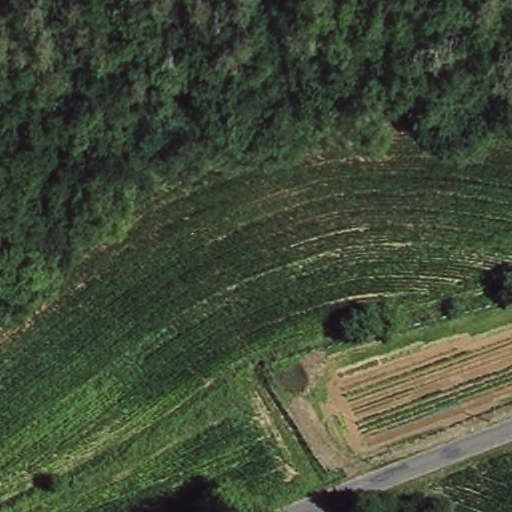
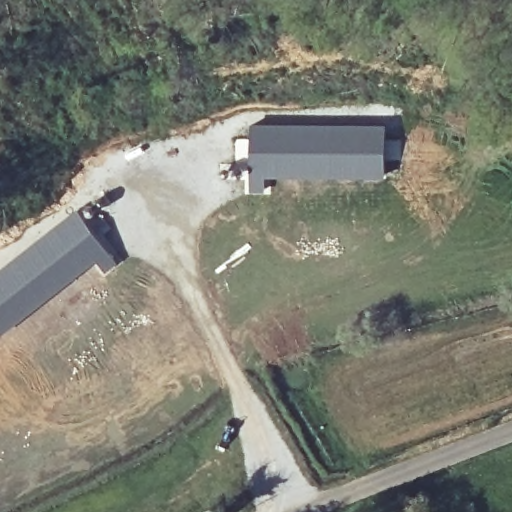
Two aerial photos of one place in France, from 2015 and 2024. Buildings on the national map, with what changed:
new [(248,124),(386,123),(384,179),(266,177),(265,194),(246,193),(248,124)]
new [(75,209),(117,263),(103,274),(95,263),(3,334),(0,330),(0,267),(75,209)]

